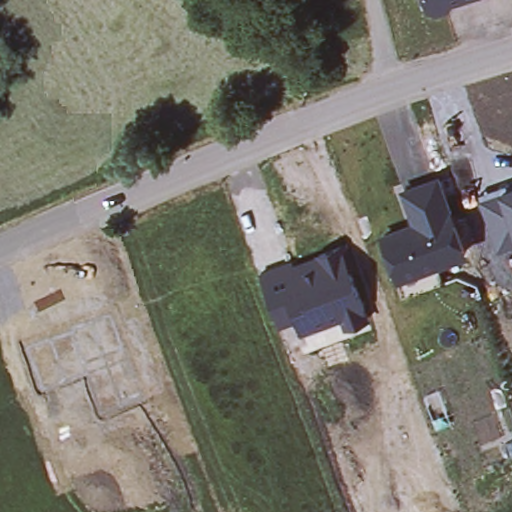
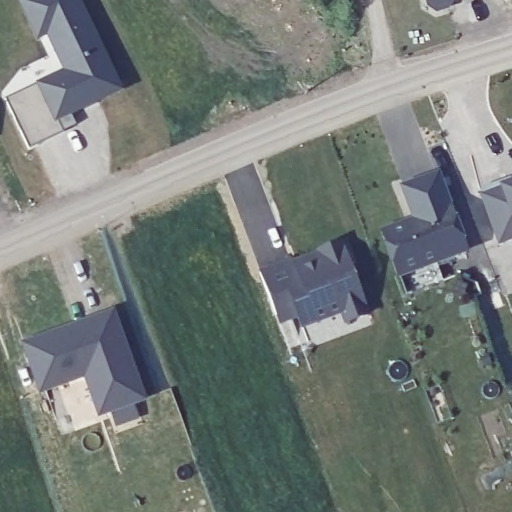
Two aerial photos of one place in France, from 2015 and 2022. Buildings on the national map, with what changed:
new [(7,97),(64,70),(48,35),(37,40),(19,0),(82,0),(124,90),(59,121),(64,133),(30,147),(7,97)]
unchanged [(451,7),(440,11),(432,7),(430,0),(455,0),(451,7)]
unchanged [(439,171),(469,254),(398,278),(380,231),(414,220),(402,184),(439,171)]
unchanged [(497,246),(478,190),(512,178),(512,238),(497,246)]
unchanged [(292,254),(294,257),(344,238),(371,317),(346,327),(340,312),(302,328),(297,314),(279,321),(258,267),(292,254)]
new [(71,332),(70,330),(111,315),(123,348),(125,348),(144,401),(99,416),(85,376),(40,392),(25,347),(71,332)]

